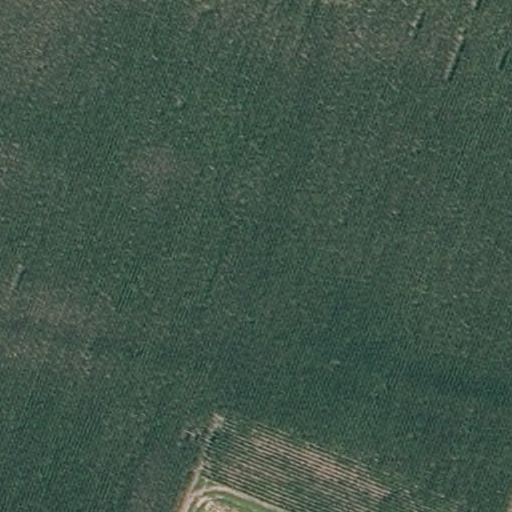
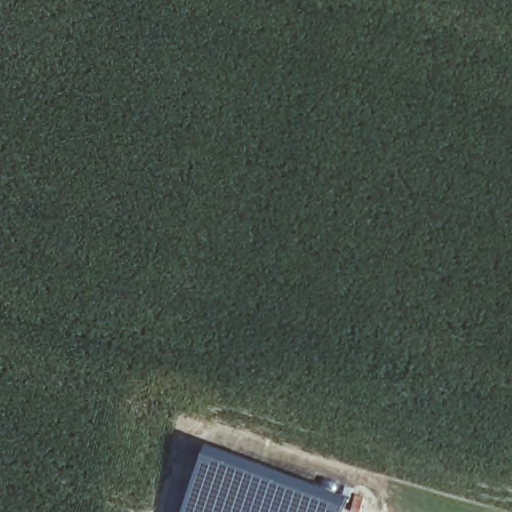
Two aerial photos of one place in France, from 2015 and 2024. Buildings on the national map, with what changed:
new [(222,453),(221,458),(255,471),(257,465),(351,497),(347,512),(180,512),(205,449),(222,453)]

